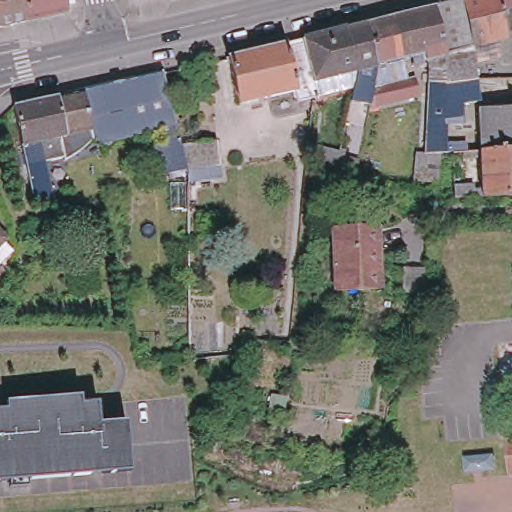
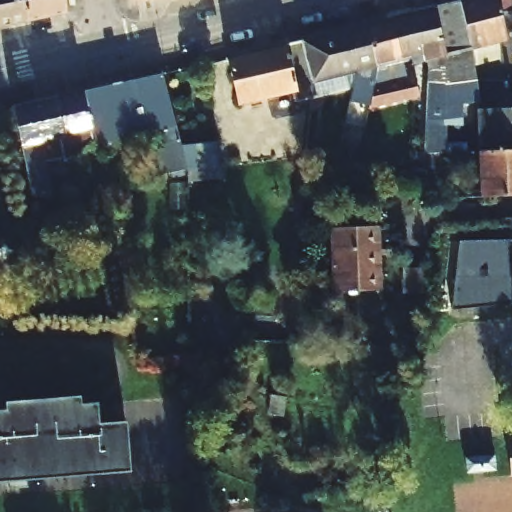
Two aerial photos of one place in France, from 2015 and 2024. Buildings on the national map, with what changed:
unchanged [(0,27),(0,0),(26,0),(28,20),(0,27)]
unchanged [(66,0),(67,12),(28,20),(26,0),(66,0)]
unchanged [(470,49),(458,2),(467,0),(511,0),(512,11),(512,65),(500,65),(499,43),(470,49)]
unchanged [(423,60),(422,54),(411,13),(458,2),(470,49),(423,60)]
unchanged [(325,34),(325,33),(344,29),(364,24),(411,13),(422,54),(373,66),(354,70),(335,75),(310,80),(300,39),(325,34)]
unchanged [(310,80),(315,96),(310,97),(295,100),(292,89),(237,102),(225,57),(300,39),(310,80)]
unchanged [(470,49),(481,99),(463,105),(463,124),(447,125),(447,151),(423,151),(428,59),(470,49)]
unchanged [(182,159),(157,165),(155,147),(167,144),(165,130),(115,140),(108,151),(97,143),(96,145),(85,93),(163,75),(182,159)]
unchanged [(412,75),(417,94),(374,104),(370,86),(412,75)]
unchanged [(32,197),(30,178),(15,109),(85,93),(96,145),(80,163),(70,169),(68,161),(50,165),(50,173),(54,195),(32,197)]
unchanged [(482,150),(481,110),(512,109),(512,150),(487,150),(482,150)]
unchanged [(217,139),(222,176),(189,181),(182,159),(179,144),(217,139)]
unchanged [(348,177),(293,164),(300,143),(356,157),(348,177)]
unchanged [(483,197),(482,150),(487,150),(512,150),(512,196),(505,196),(483,197)]
unchanged [(475,151),(475,166),(457,166),(456,151),(475,151)]
unchanged [(378,224),(380,286),(337,287),(336,224),(378,224)]
new [(512,302),(453,307),(459,240),(512,239),(512,255),(512,302)]
unchanged [(10,250),(0,260),(0,240),(10,250)]
unchanged [(87,382),(90,402),(117,399),(122,450),(0,464),(0,393),(87,382)]
unchanged [(511,436),(512,436),(512,466),(510,437),(511,436)]
unchanged [(498,471),(470,473),(467,458),(496,456),(498,471)]

